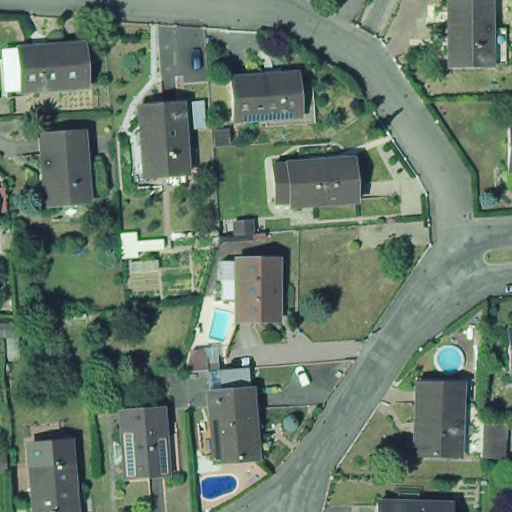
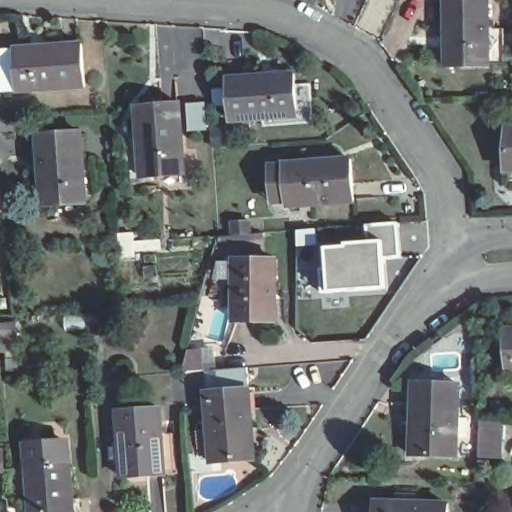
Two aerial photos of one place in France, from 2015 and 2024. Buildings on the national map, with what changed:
unchanged [(483,57),(442,57),(441,0),(483,0),(483,57)]
unchanged [(76,44),(81,85),(4,94),(0,59),(0,54),(76,44)]
unchanged [(253,124),(252,115),(221,116),(219,75),(281,71),(281,82),(299,81),(301,121),(253,124)]
unchanged [(181,100),(190,179),(139,184),(130,106),(181,100)]
unchanged [(504,126),(512,127),(512,168),(504,167),(504,126)]
unchanged [(84,138),(89,208),(48,210),(43,140),(84,138)]
unchanged [(346,199),(280,203),(279,198),(277,160),(344,156),(346,199)]
new [(339,247),(339,243),(364,243),(363,224),(395,223),(398,258),(381,258),(382,290),(323,294),(319,248),(339,247)]
unchanged [(274,258),(271,318),(231,317),(233,256),(274,258)]
unchanged [(512,376),(508,376),(505,334),(512,334),(512,376)]
unchanged [(221,368),(208,369),(185,371),(191,351),(208,350),(208,362),(221,361),(221,368)]
unchanged [(253,459),(211,463),(206,394),(248,391),(248,393),(252,392),(253,410),(249,410),(253,459)]
unchanged [(451,393),(449,458),(404,457),(407,392),(451,393)]
unchanged [(159,473),(118,476),(112,409),(154,406),(156,431),(159,473)]
unchanged [(508,462),(483,461),(484,419),(508,419),(508,462)]
unchanged [(30,469),(33,469),(30,446),(66,443),(68,465),(70,465),(75,512),(33,512),(33,508),(30,469)]
unchanged [(374,512),(374,508),(436,512),(374,512)]

